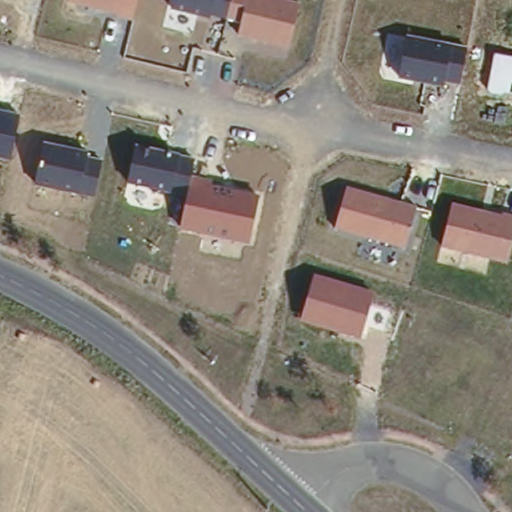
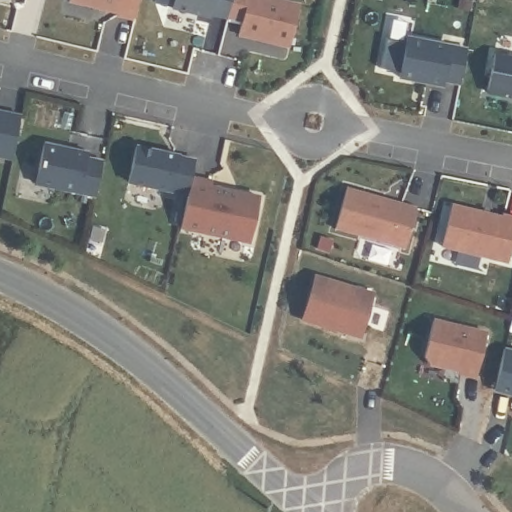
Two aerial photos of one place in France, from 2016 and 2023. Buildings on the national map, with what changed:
unchanged [(67,4),(68,0),(138,0),(133,20),(67,4)]
unchanged [(291,48),(237,36),(240,20),(210,14),(210,19),(168,8),(171,0),(291,0),(300,2),(291,48)]
unchanged [(469,46),(461,85),(444,82),(443,87),(400,80),(407,37),(469,46)]
unchanged [(504,96),(486,92),(493,54),(512,57),(512,94),(505,93),(504,96)]
unchanged [(21,112),(12,159),(0,156),(0,108),(21,112)]
unchanged [(88,149),(87,159),(102,162),(96,198),(34,186),(43,140),(88,149)]
unchanged [(195,157),(192,173),(213,177),(212,184),(259,192),(249,245),(180,230),(185,197),(125,186),(135,143),(195,157)]
unchanged [(417,205),(403,251),(333,229),(348,184),(417,205)]
unchanged [(512,255),(510,263),(441,246),(452,200),(512,215),(512,255)]
unchanged [(375,291),(360,340),(299,322),(313,273),(375,291)]
new [(476,377),(423,365),(431,321),(487,334),(476,377)]
new [(501,350),(512,352),(512,400),(493,396),(501,350)]

